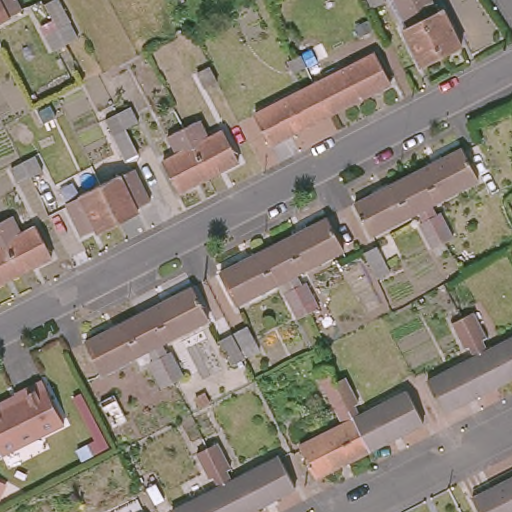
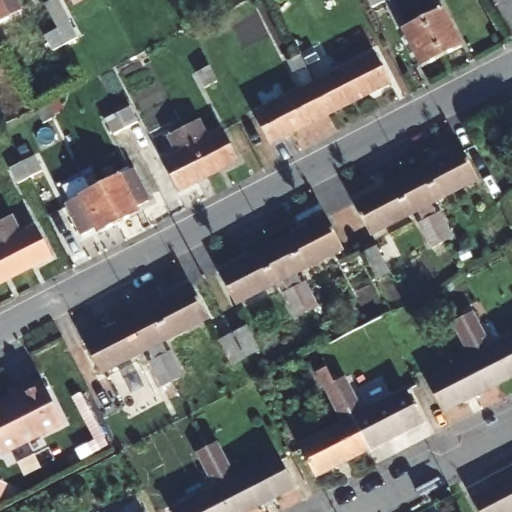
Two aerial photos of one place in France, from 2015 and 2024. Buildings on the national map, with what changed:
unchanged [(19,9),(4,16),(5,19),(0,21),(0,0),(14,0),(19,9)]
unchanged [(44,34),(56,26),(42,3),(47,0),(55,0),(76,35),(65,41),(52,48),(44,34)]
unchanged [(369,0),(376,0),(370,3),(369,0)]
unchanged [(420,62),(401,25),(405,22),(395,0),(415,0),(441,51),(420,62)]
unchanged [(435,7),(442,4),(460,41),(441,51),(415,0),(432,0),(435,7)]
unchanged [(348,55),(352,63),(364,57),(360,49),(369,44),(389,84),(359,99),(339,60),(348,55)]
unchanged [(317,71),(320,80),(334,72),(330,64),(339,60),(359,99),(330,114),(314,83),(310,75),(317,71)]
unchanged [(217,81),(205,87),(197,71),(210,65),(217,81)]
unchanged [(314,83),(330,114),(299,130),(283,99),(314,83)]
unchanged [(269,145),(253,115),(283,99),(299,130),(269,145)]
unchanged [(124,160),(112,135),(104,119),(126,108),(127,107),(135,122),(134,124),(124,129),(136,153),(124,160)]
unchanged [(199,120),(209,137),(224,130),(239,161),(207,176),(184,127),(199,120)]
unchanged [(177,192),(162,161),(175,155),(166,136),(184,127),(207,176),(177,192)]
unchanged [(480,178),(427,206),(411,175),(464,147),(480,178)]
unchanged [(10,169),(22,162),(33,156),(40,172),(30,177),(17,184),(10,169)]
unchanged [(99,185),(117,175),(118,177),(133,170),(149,201),(134,209),(135,214),(117,222),(99,185)]
unchanged [(427,206),(373,234),(357,202),(411,175),(427,206)]
unchanged [(97,233),(94,229),(80,236),(64,205),(80,197),(79,195),(99,185),(117,222),(97,233)]
unchanged [(27,206),(37,224),(50,217),(65,247),(35,263),(11,215),(27,206)]
unchanged [(430,212),(435,210),(437,214),(443,211),(455,235),(444,241),(433,247),(420,222),(427,220),(425,215),(430,212)]
unchanged [(0,267),(0,242),(5,240),(0,231),(0,220),(11,215),(35,263),(6,278),(0,267)]
unchanged [(329,217),(344,249),(290,276),(274,245),(329,217)]
unchanged [(220,272),(274,245),(290,276),(236,303),(220,272)]
unchanged [(378,245),(390,269),(375,276),(365,251),(378,245)]
unchanged [(299,278),(302,283),(308,280),(320,305),(307,311),(296,316),(284,292),(290,289),(287,283),(292,281),(299,278)]
unchanged [(171,350),(184,374),(172,380),(161,385),(149,361),(142,365),(137,354),(100,373),(85,342),(139,315),(193,286),(208,317),(160,342),(165,352),(171,350)]
unchanged [(466,345),(460,347),(447,323),(459,317),(470,311),(484,336),(477,339),(480,344),(474,347),(469,350),(466,345)]
unchanged [(247,326),(259,348),(247,354),(235,332),(247,326)]
unchanged [(229,365),(217,340),(231,334),(242,359),(229,365)]
unchanged [(512,334),(512,373),(492,383),(477,351),(512,334)]
unchanged [(439,411),(422,380),(477,351),(492,383),(439,411)]
unchanged [(347,376),(359,401),(353,403),(355,409),(349,412),(345,415),(342,410),(337,411),(324,387),(334,382),(347,376)]
unchanged [(15,393),(29,386),(42,380),(64,422),(50,429),(0,453),(0,405),(17,396),(15,393)]
unchanged [(406,390),(423,421),(368,450),(352,417),(406,390)]
unchanged [(114,395),(125,420),(112,426),(100,401),(114,395)]
unchanged [(315,477),(298,445),(352,417),(368,450),(315,477)]
unchanged [(214,475),(207,477),(195,452),(207,447),(217,441),(230,466),(225,469),(227,475),(222,477),(224,483),(278,455),(295,488),(248,512),(171,512),(170,510),(219,485),(214,475)]
unchanged [(502,482),(512,477),(512,502),(502,482)]
unchanged [(479,512),(472,497),(502,482),(512,502),(512,512),(479,512)]
unchanged [(137,500),(143,512),(124,512),(122,508),(137,500)]

